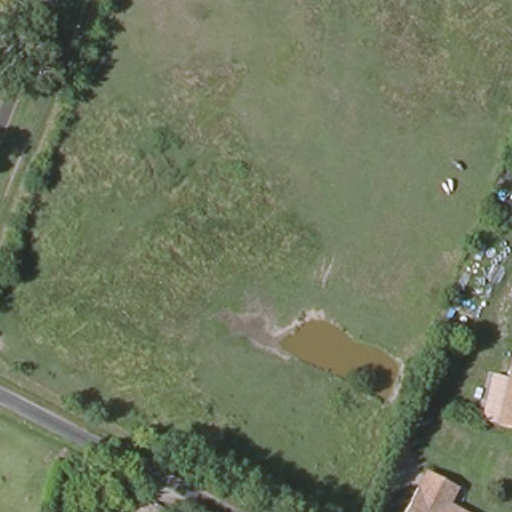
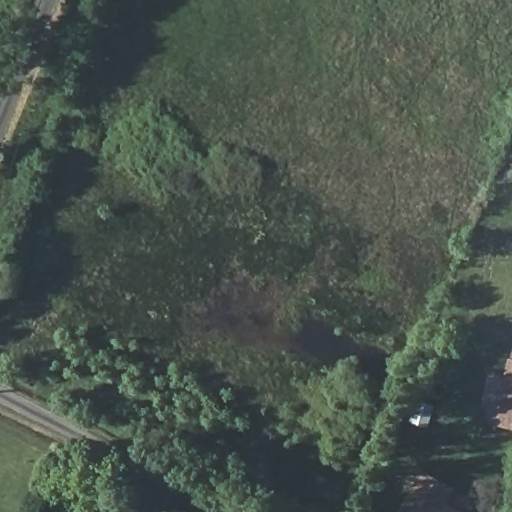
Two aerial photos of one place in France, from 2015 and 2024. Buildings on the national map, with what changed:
unchanged [(512,362),(512,427),(496,423),(512,362)]
unchanged [(455,486),(448,501),(469,512),(407,512),(428,472),(455,486)]

